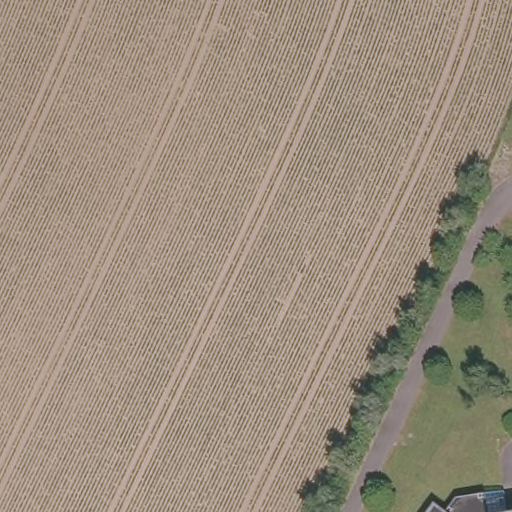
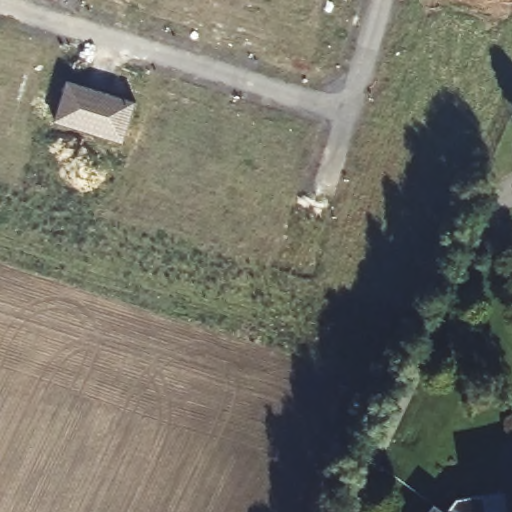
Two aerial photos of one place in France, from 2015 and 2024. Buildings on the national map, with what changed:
new [(91,88),(90,90),(98,93),(98,91),(136,102),(123,143),(54,122),(66,81),(91,88)]
unchanged [(445,508),(455,494),(505,486),(509,512),(426,512),(435,500),(445,508)]

